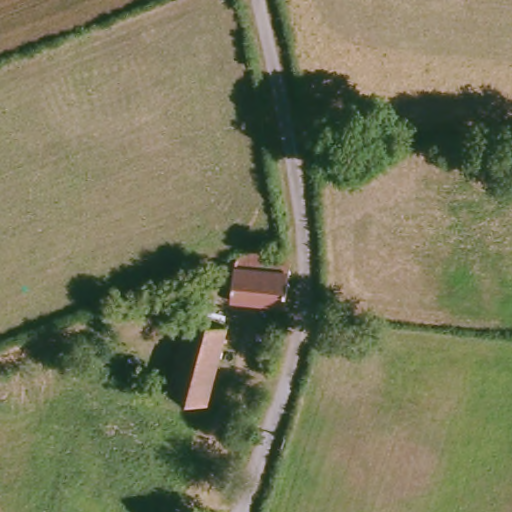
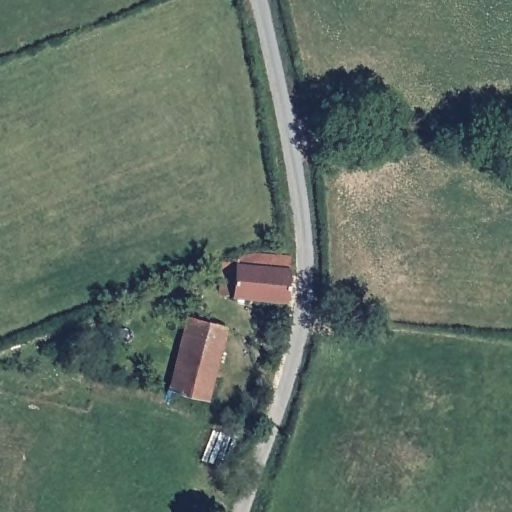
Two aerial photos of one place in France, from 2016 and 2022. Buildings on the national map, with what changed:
unchanged [(299,306),(244,299),(244,296),(233,294),(237,253),(305,259),(299,306)]
unchanged [(216,404),(181,396),(201,321),(238,330),(216,404)]

